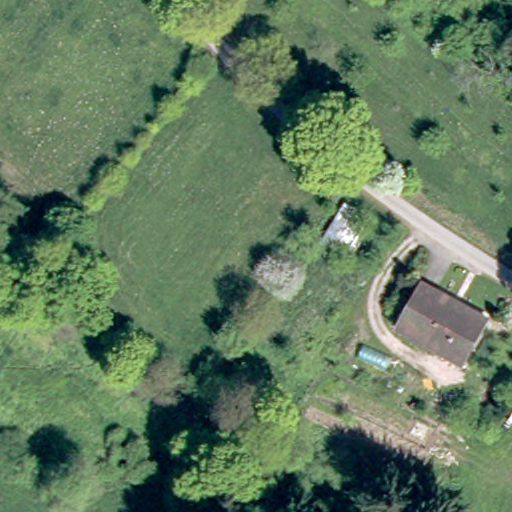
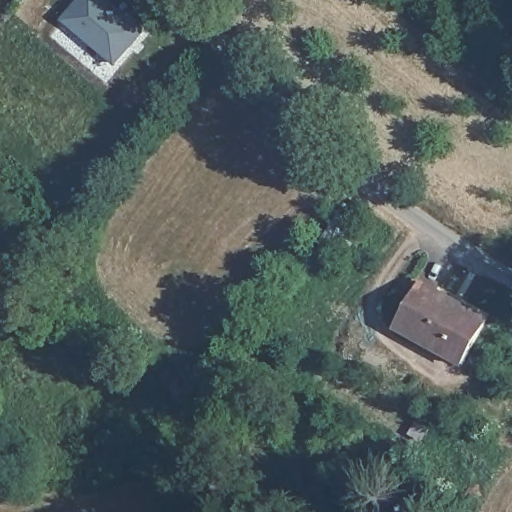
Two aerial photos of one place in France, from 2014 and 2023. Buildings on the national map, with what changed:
new [(128,14),(130,11),(149,28),(118,65),(64,20),(80,0),(111,0),(128,14)]
new [(344,205),(356,212),(352,219),(364,226),(346,255),(321,240),(344,205)]
unchanged [(394,325),(421,280),(453,300),(485,319),(482,325),(458,364),(394,325)]

